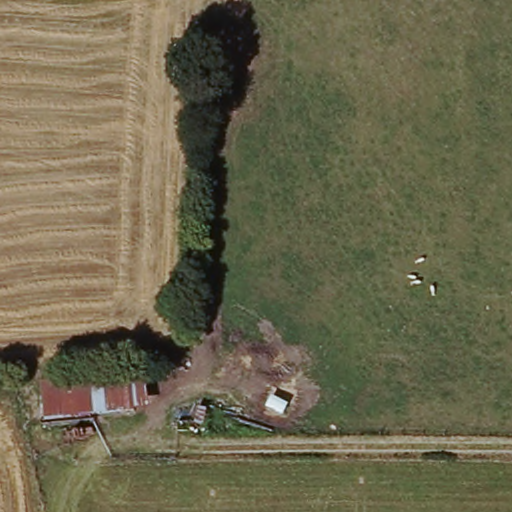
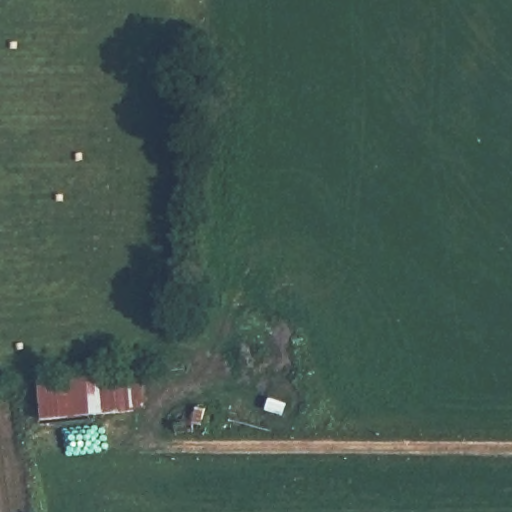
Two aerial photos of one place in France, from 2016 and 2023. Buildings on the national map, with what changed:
unchanged [(62,381),(150,372),(151,406),(64,413),(62,381)]

